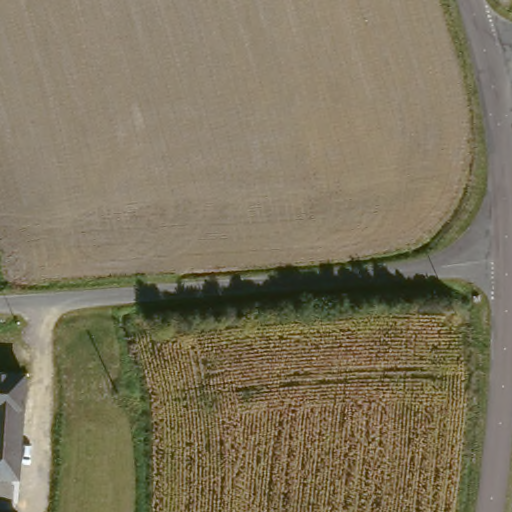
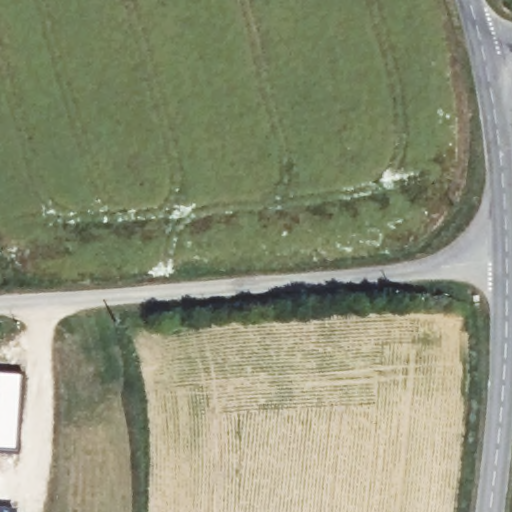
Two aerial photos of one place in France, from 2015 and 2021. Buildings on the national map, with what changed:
unchanged [(0,501),(0,370),(3,370),(24,372),(17,501),(0,501)]
unchanged [(15,510),(14,512),(0,512),(0,509),(15,510)]

